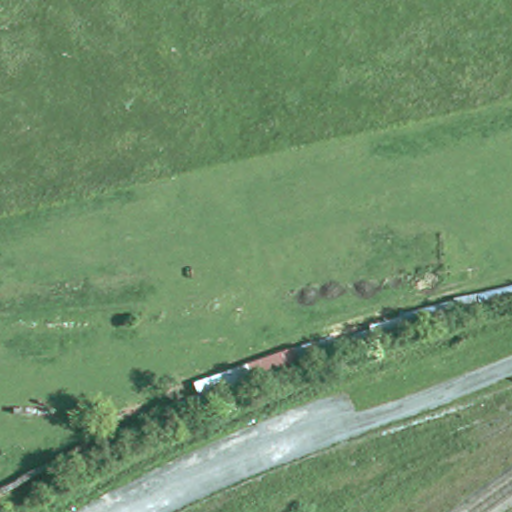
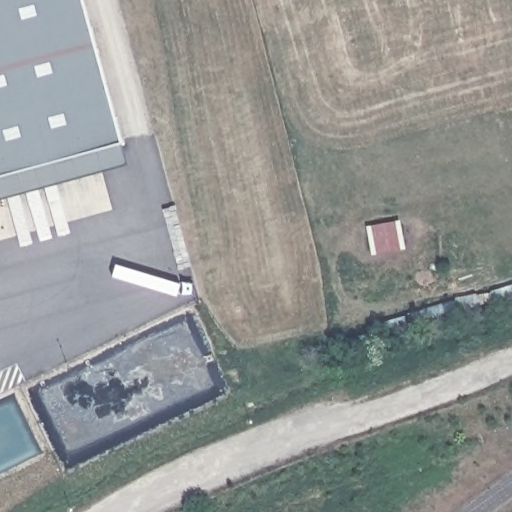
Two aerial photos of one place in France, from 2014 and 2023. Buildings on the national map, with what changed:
new [(0,176),(0,0),(82,0),(120,143),(0,176)]
new [(0,198),(0,176),(120,143),(126,164),(0,198)]

